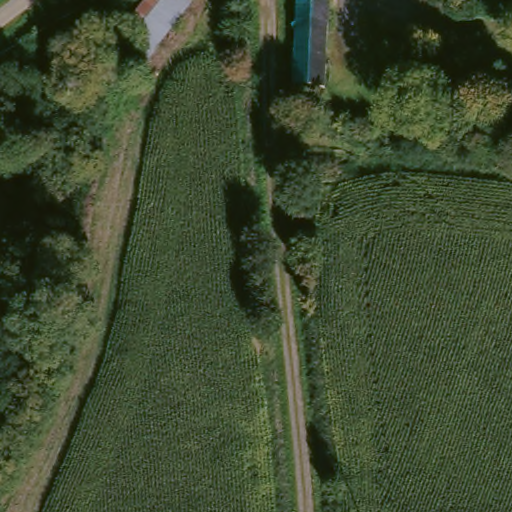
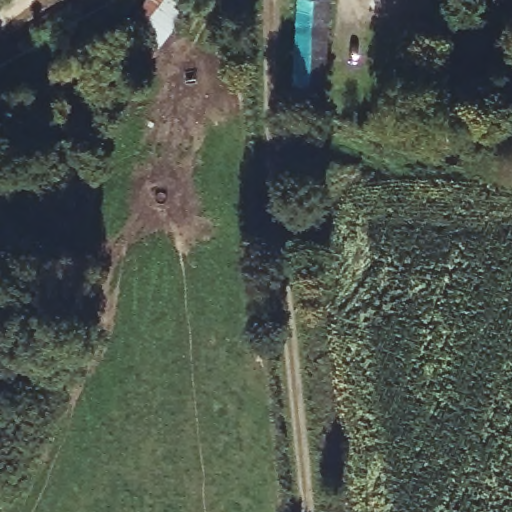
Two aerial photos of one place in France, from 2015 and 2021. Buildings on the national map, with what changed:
unchanged [(154,0),(196,0),(137,75),(113,56),(154,0)]
unchanged [(329,0),(325,89),(295,87),(297,0),(329,0)]

